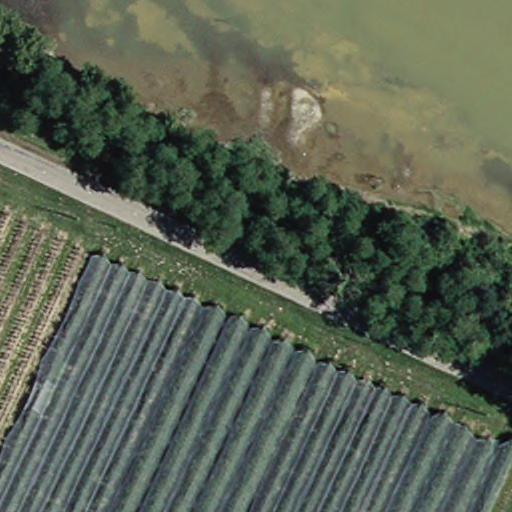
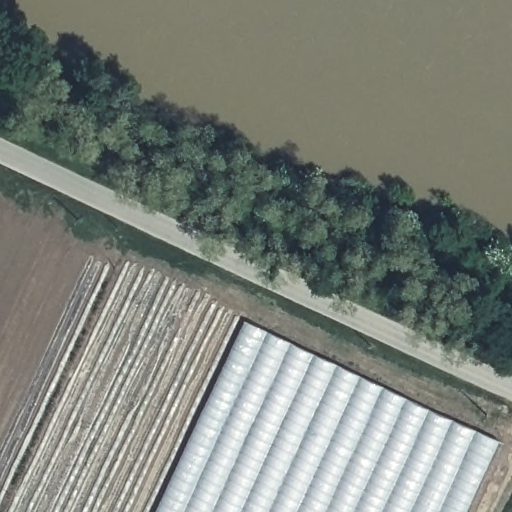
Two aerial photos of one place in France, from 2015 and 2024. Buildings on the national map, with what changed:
new [(467,512),(155,512),(244,319),(501,440),(467,512)]

